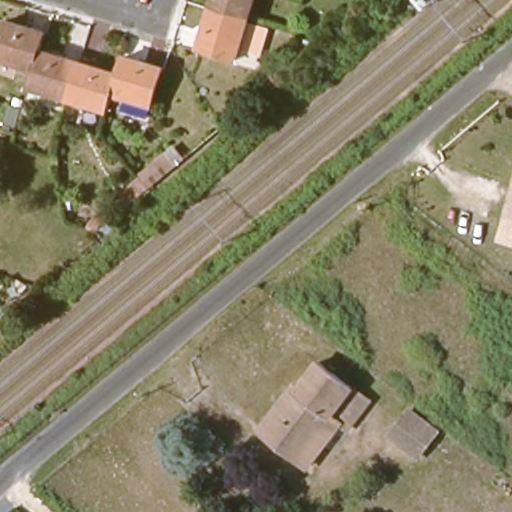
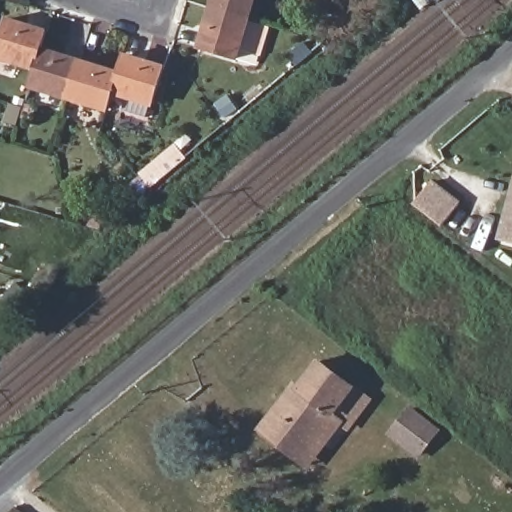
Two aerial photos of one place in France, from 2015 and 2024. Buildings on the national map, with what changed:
unchanged [(216,10),(219,0),(261,0),(255,22),(216,10)]
unchanged [(245,58),(206,47),(216,10),(255,22),(245,58)]
unchanged [(35,66),(1,55),(12,18),(47,29),(42,46),(35,66)]
unchanged [(71,91),(31,80),(35,66),(42,46),(81,57),(71,91)]
unchanged [(169,65),(159,101),(117,88),(122,69),(129,52),(169,65)]
unchanged [(71,91),(81,57),(122,69),(117,88),(112,103),(71,91)]
new [(430,184),(457,205),(440,227),(412,206),(430,184)]
unchanged [(512,216),(512,218),(511,218),(512,216)]
unchanged [(281,446),(255,427),(293,381),(300,383),(319,358),(370,396),(348,425),(341,420),(305,465),(281,446)]
unchanged [(388,437),(407,411),(418,418),(436,432),(416,458),(397,443),(388,437)]

